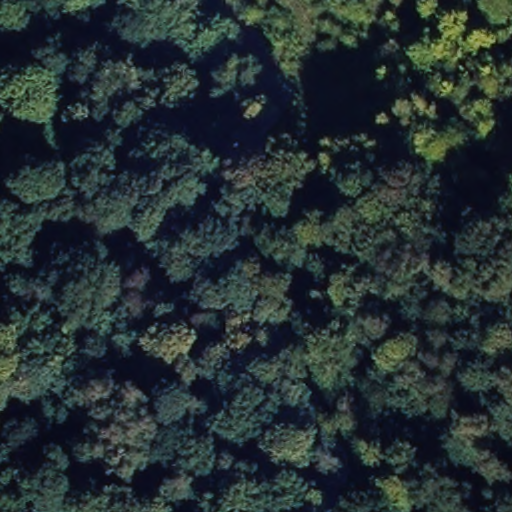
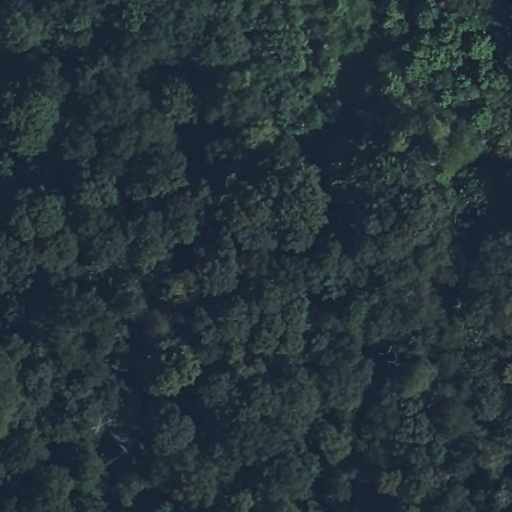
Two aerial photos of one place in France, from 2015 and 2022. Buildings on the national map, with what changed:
[]

